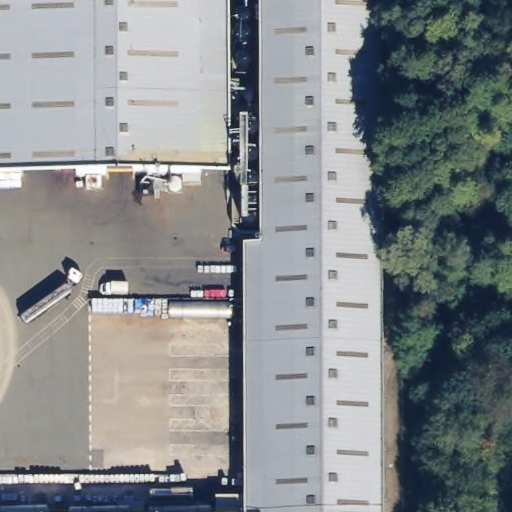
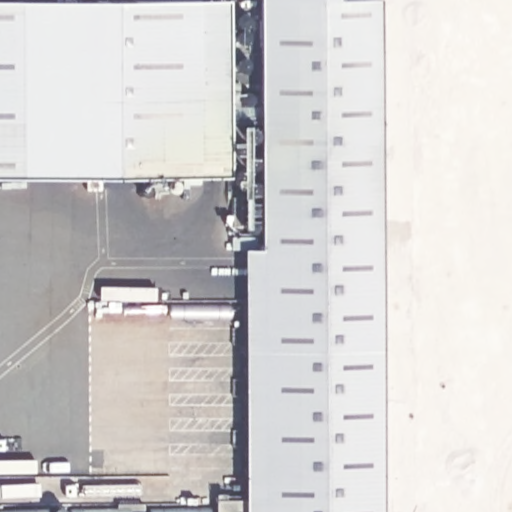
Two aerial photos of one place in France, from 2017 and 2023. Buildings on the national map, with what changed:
unchanged [(0,173),(0,0),(96,0),(96,45),(76,45),(77,172),(0,173)]
unchanged [(183,178),(183,171),(77,172),(76,45),(96,45),(96,0),(200,0),(201,170),(201,171),(201,178),(183,178)]
unchanged [(200,0),(227,0),(228,170),(201,170),(200,0)]
unchanged [(382,512),(263,512),(262,0),(380,0),(382,512)]

